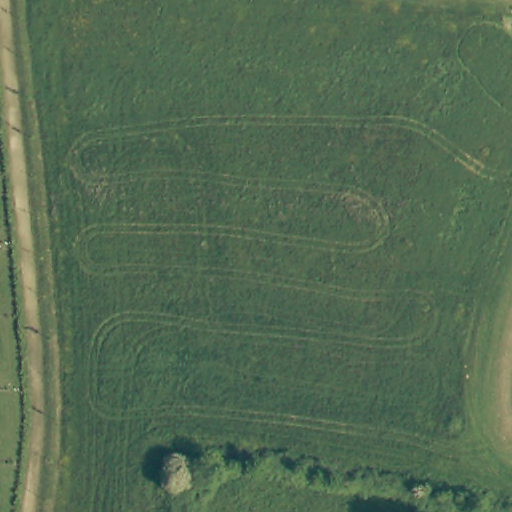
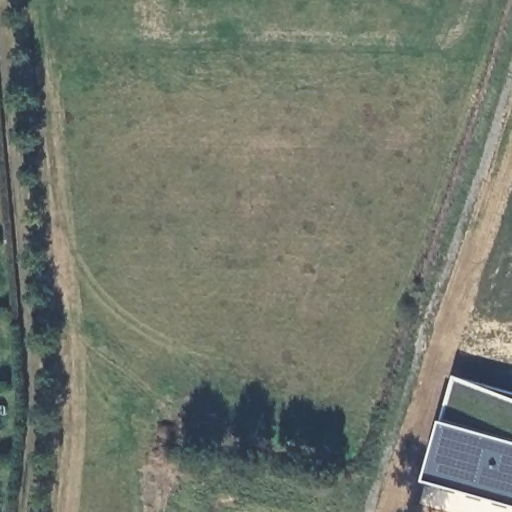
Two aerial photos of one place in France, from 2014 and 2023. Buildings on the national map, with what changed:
new [(512,502),(427,478),(457,375),(512,391),(512,502)]

